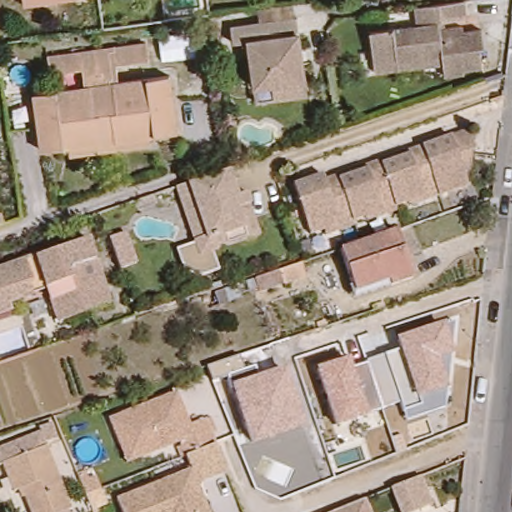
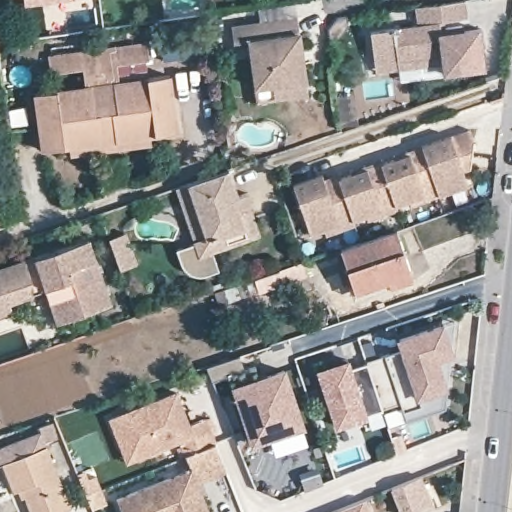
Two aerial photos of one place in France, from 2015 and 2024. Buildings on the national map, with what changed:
unchanged [(419,27),(417,11),(466,4),(468,20),(445,24),(446,32),(463,30),(464,34),(484,32),(486,51),(482,51),(484,68),(466,70),(466,75),(447,78),(444,57),(377,66),(373,34),(419,27)]
unchanged [(304,35),(307,87),(255,99),(248,41),(304,35)]
unchanged [(47,145),(40,89),(92,81),(89,66),(57,70),(55,51),(152,37),(155,57),(123,62),(126,78),(175,71),(183,127),(155,131),(157,137),(76,148),(75,142),(47,145)]
unchanged [(324,232),(309,237),(292,187),(321,177),(323,183),(348,175),(349,178),(359,175),(357,171),(390,160),(391,164),(401,160),(400,156),(424,149),(469,132),(474,146),(473,160),(472,171),(466,173),(471,189),(426,204),(412,208),(410,202),(396,207),(398,213),(382,219),(370,223),(368,217),(353,222),(355,228),(339,234),(326,238),(324,232)]
unchanged [(235,200),(245,197),(249,209),(247,209),(257,240),(234,247),(211,255),(217,275),(203,279),(200,280),(198,280),(196,280),(195,280),(194,280),(193,280),(191,279),(190,278),(189,278),(188,278),(188,277),(186,276),(185,275),(184,275),(183,274),(182,273),(182,272),(181,272),(181,271),(180,270),(179,269),(179,268),(179,267),(178,266),(174,254),(193,247),(178,205),(174,194),(180,192),(227,176),(232,190),(235,200)]
unchanged [(345,244),(400,225),(416,273),(394,281),(394,280),(358,292),(353,280),(356,277),(345,244)]
unchanged [(120,235),(132,266),(115,271),(104,240),(120,235)]
unchanged [(54,327),(42,295),(7,307),(10,316),(0,319),(0,273),(87,243),(109,310),(54,327)]
unchanged [(214,291),(298,262),(302,261),(306,277),(230,300),(230,303),(218,305),(214,291)]
unchanged [(406,421),(398,402),(334,425),(313,365),(348,355),(351,367),(400,351),(395,336),(453,321),(445,406),(406,421)]
unchanged [(227,375),(211,381),(204,366),(237,355),(243,369),(253,366),(258,376),(284,366),(305,427),(250,447),(230,387),(227,375)]
unchanged [(123,444),(112,416),(179,390),(192,422),(208,415),(218,441),(217,442),(188,455),(181,440),(144,454),(129,460),(123,444)]
unchanged [(46,436),(41,437),(37,429),(42,427),(40,425),(50,421),(57,437),(48,441),(46,436)]
unchanged [(7,435),(10,443),(0,446),(0,437),(7,435)]
unchanged [(230,470),(200,481),(212,512),(124,512),(118,498),(193,468),(188,455),(217,442),(230,470)]
unchanged [(16,491),(5,463),(48,446),(73,508),(65,512),(35,512),(29,498),(25,500),(22,489),(16,491)]
unchanged [(414,478),(425,506),(411,512),(394,512),(385,490),(414,478)]
unchanged [(370,512),(339,512),(365,501),(370,512)]

